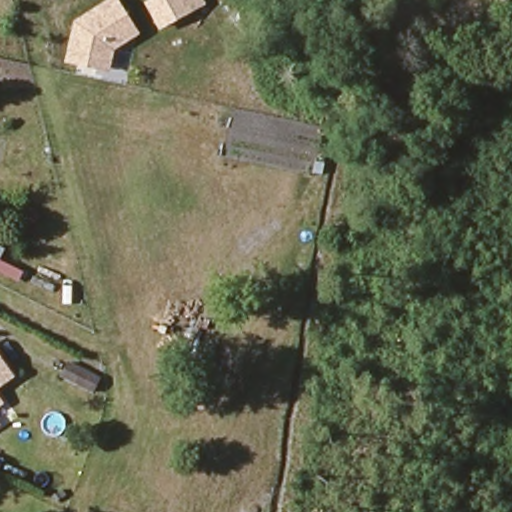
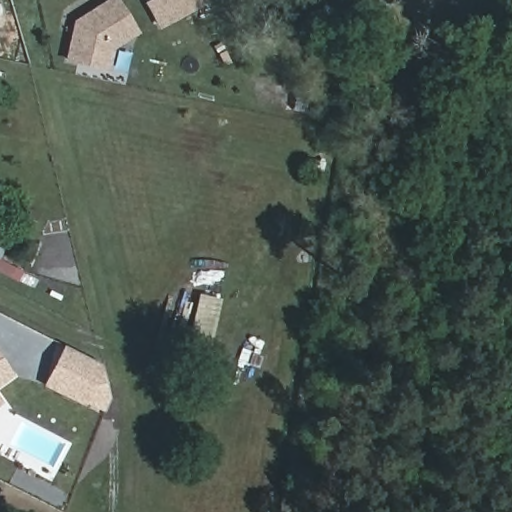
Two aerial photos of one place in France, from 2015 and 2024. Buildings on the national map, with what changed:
unchanged [(110,70),(65,63),(74,21),(109,0),(121,0),(140,33),(114,49),(110,70)]
unchanged [(144,3),(149,0),(203,0),(204,4),(158,29),(144,3)]
unchanged [(5,245),(0,256),(0,243),(5,245)]
unchanged [(0,271),(0,258),(24,269),(20,280),(0,271)]
new [(62,346),(105,367),(96,385),(112,393),(101,414),(43,386),(62,346)]
unchanged [(15,378),(0,388),(0,356),(15,378)]
unchanged [(0,412),(0,397),(6,408),(0,412)]
demolished [(12,441),(4,459),(0,458),(0,436),(12,441)]

